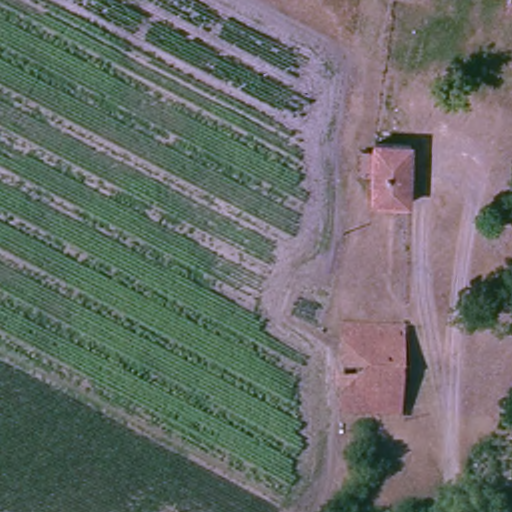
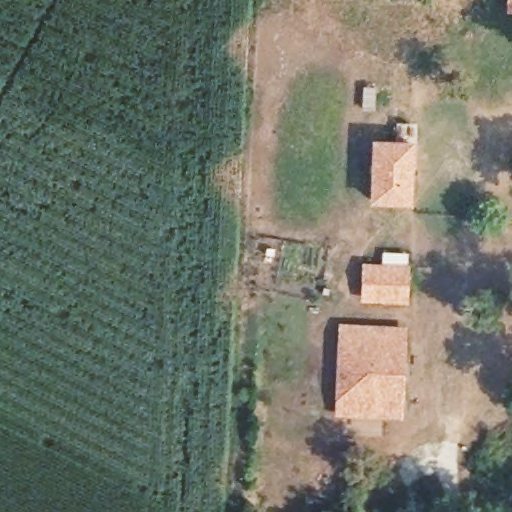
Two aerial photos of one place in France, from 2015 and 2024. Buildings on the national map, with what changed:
unchanged [(412,159),(410,203),(366,201),(367,175),(367,150),(367,143),(412,145),(412,159)]
new [(366,268),(407,270),(406,285),(406,300),(365,298),(365,284),(366,268)]
unchanged [(334,414),(336,327),(347,327),(405,330),(402,417),(366,416),(334,414)]

